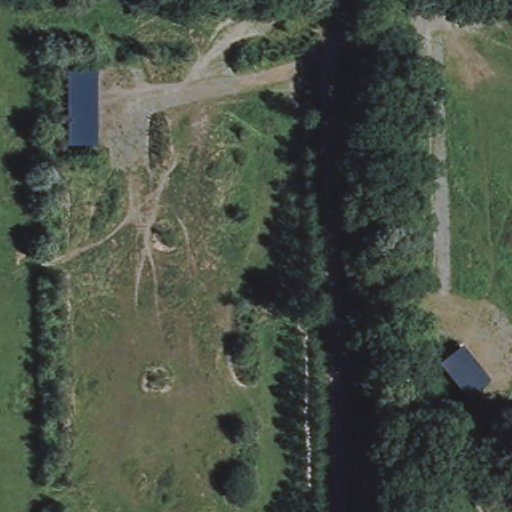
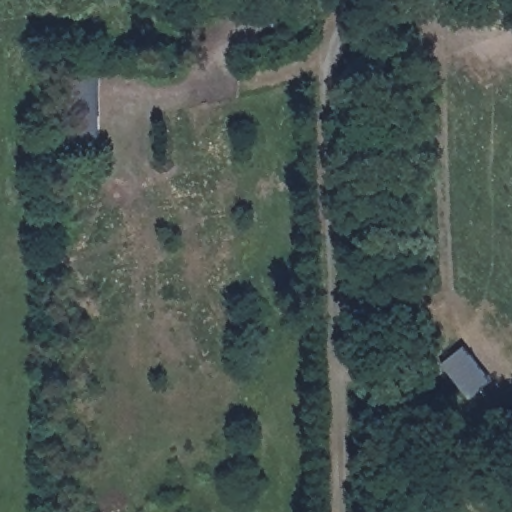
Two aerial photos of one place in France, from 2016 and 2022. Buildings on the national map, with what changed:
unchanged [(476,385),(458,385),(457,323),(475,323),(476,385)]

